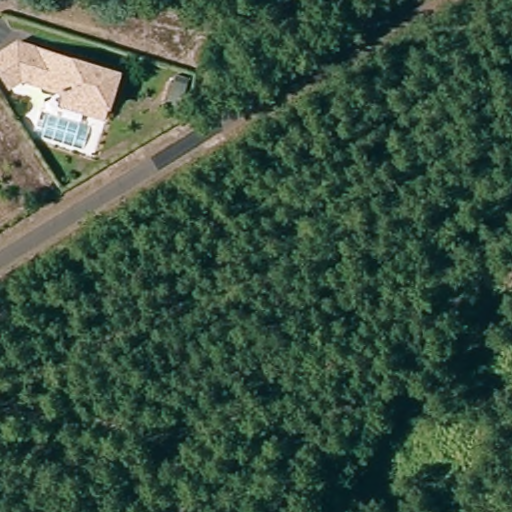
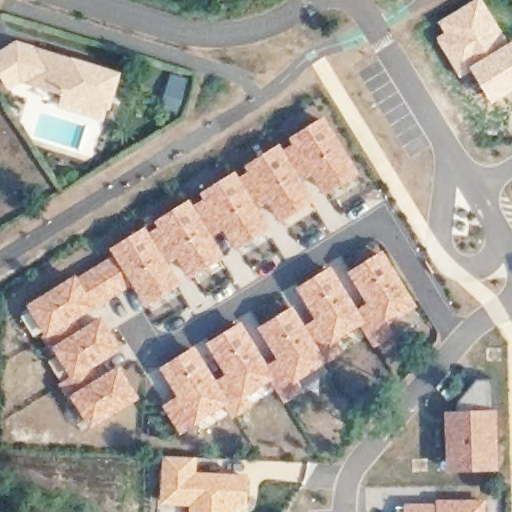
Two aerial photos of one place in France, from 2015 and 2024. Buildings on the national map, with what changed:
new [(444,32),(437,22),(472,0),(483,0),(509,41),(469,69),(470,70),(459,77),(435,38),(444,32)]
unchanged [(63,100),(66,90),(20,76),(9,83),(0,69),(0,51),(17,40),(118,70),(107,107),(106,112),(63,100)]
new [(512,41),(512,91),(491,104),(470,70),(469,69),(509,41),(510,42),(512,41)]
unchanged [(180,101),(168,98),(173,80),(186,84),(180,101)]
new [(140,397),(91,428),(76,400),(73,402),(61,384),(72,375),(59,351),(55,353),(43,336),(47,331),(30,305),(77,275),(115,253),(113,250),(146,228),(149,232),(158,227),(156,222),(190,200),(194,206),(205,199),(202,194),(237,172),(240,177),(251,171),(247,165),(281,145),(284,150),(295,145),(291,137),(326,117),(360,173),(326,194),(313,173),(303,180),(315,200),(281,222),(270,201),(259,209),(271,228),(238,250),(225,229),(213,236),(225,256),(191,276),(179,257),(169,265),(182,284),(148,304),(135,282),(95,307),(122,350),(95,367),(102,378),(120,366),(140,397)]
new [(165,406),(178,397),(162,368),(196,346),(216,380),(226,375),(209,342),(243,322),(268,365),(278,358),(260,327),(294,306),(306,326),(317,318),(298,288),(333,266),(359,308),(367,303),(350,272),(385,251),(418,305),(388,323),(396,334),(376,346),(362,324),(338,340),(344,350),(298,380),(304,391),(285,401),(271,380),(247,395),(253,404),(234,417),(225,403),(181,433),(165,406)]
new [(460,399),(476,379),(490,380),(492,408),(498,408),(499,472),(447,473),(444,410),(457,410),(460,399)]
new [(198,457),(197,470),(250,473),(248,508),(237,508),(236,512),(187,512),(188,507),(158,505),(162,455),(198,457)]
new [(437,504),(437,499),(486,500),(485,512),(406,512),(406,505),(437,504)]

